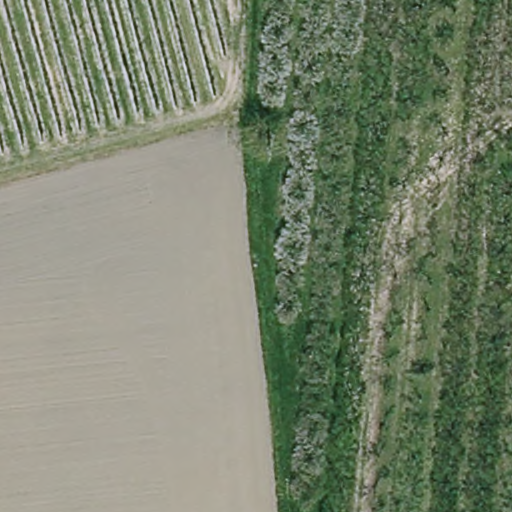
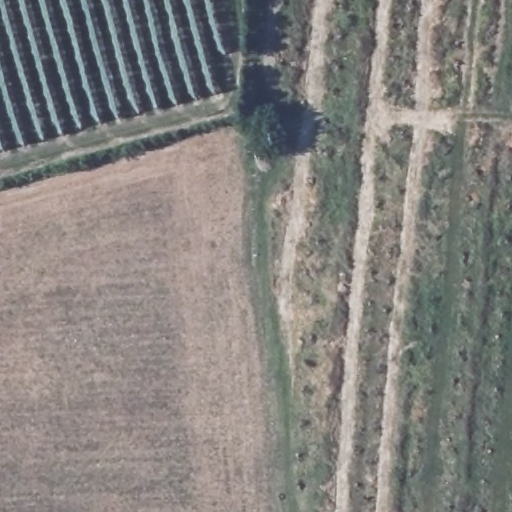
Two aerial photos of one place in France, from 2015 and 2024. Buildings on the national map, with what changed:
[]

